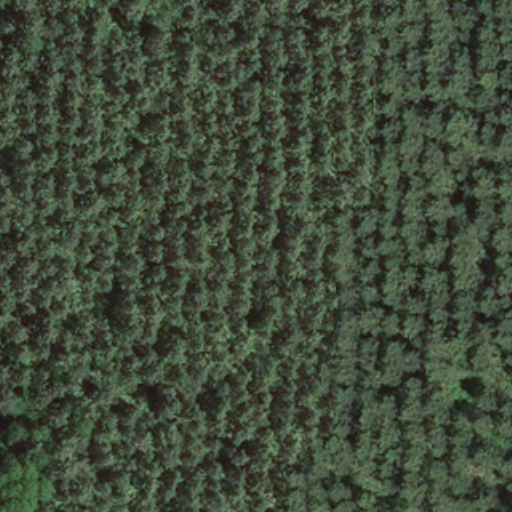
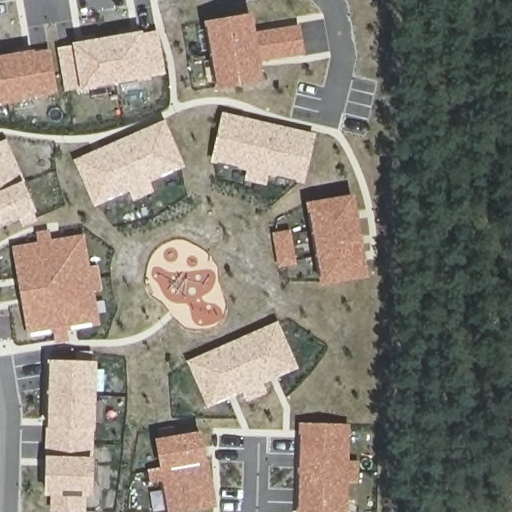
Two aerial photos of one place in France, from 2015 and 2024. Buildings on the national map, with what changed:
new [(256,32),(301,24),(306,55),(261,62),(264,80),(216,88),(205,20),(252,12),(256,32)]
new [(165,74),(65,92),(58,46),(158,29),(165,74)]
new [(45,48),(49,72),(54,71),(58,93),(0,103),(0,57),(45,48)]
new [(264,176),(262,185),(245,181),(247,172),(211,163),(223,112),(316,134),(304,185),(264,176)]
new [(74,159),(165,120),(185,167),(150,182),(154,191),(135,200),(131,190),(94,206),(74,159)]
new [(37,220),(22,226),(19,218),(0,227),(0,141),(5,139),(37,211),(37,220)]
new [(354,194),(368,274),(320,283),(305,202),(354,194)]
new [(38,241),(36,231),(49,229),(51,239),(83,234),(89,267),(99,266),(101,291),(94,292),(99,325),(68,330),(69,340),(55,342),(54,332),(29,337),(13,246),(38,241)]
new [(291,229),(297,265),(277,268),(272,232),(291,229)]
new [(296,369),(263,383),(267,393),(246,403),(242,393),(207,407),(187,361),(278,321),(294,357),(295,367),(296,369)]
new [(68,512),(49,511),(50,495),(44,495),(48,358),(92,359),(86,512),(68,512)]
new [(350,424),(349,460),(356,460),(355,484),(349,484),(348,512),(297,512),(300,422),(350,424)]
new [(167,512),(162,480),(150,482),(148,472),(166,469),(161,437),(203,430),(216,507),(191,512),(167,512)]

